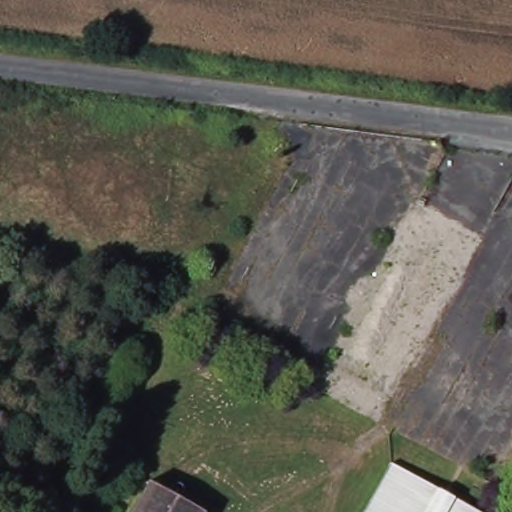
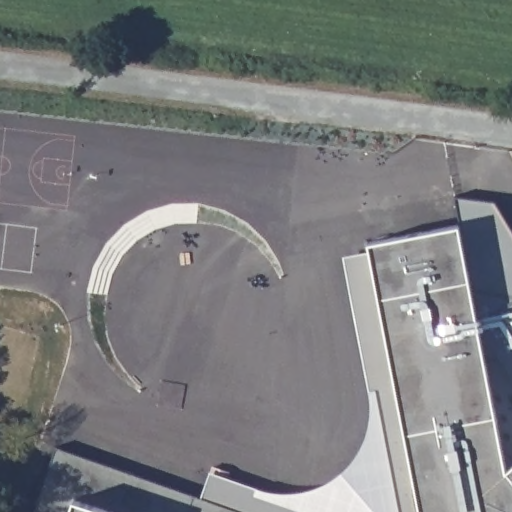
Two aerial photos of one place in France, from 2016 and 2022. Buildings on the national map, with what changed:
new [(507,470),(512,475),(512,512),(412,512),(397,427),(405,425),(371,244),(461,224),(507,470)]
new [(248,512),(36,512),(57,445),(248,512)]
demolished [(477,512),(364,512),(392,464),(477,512)]
new [(512,475),(507,470),(512,465),(512,475)]
demolished [(187,512),(130,512),(143,487),(187,512)]

